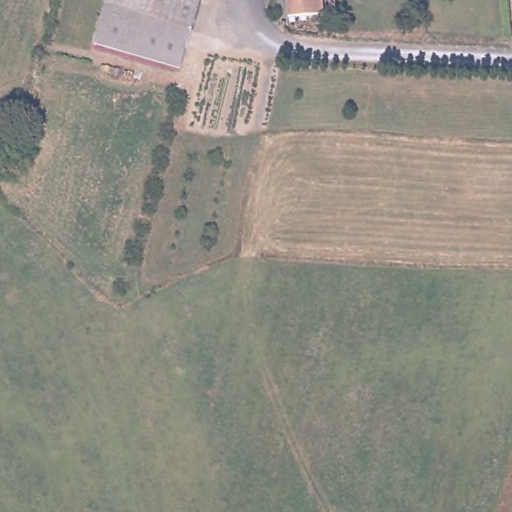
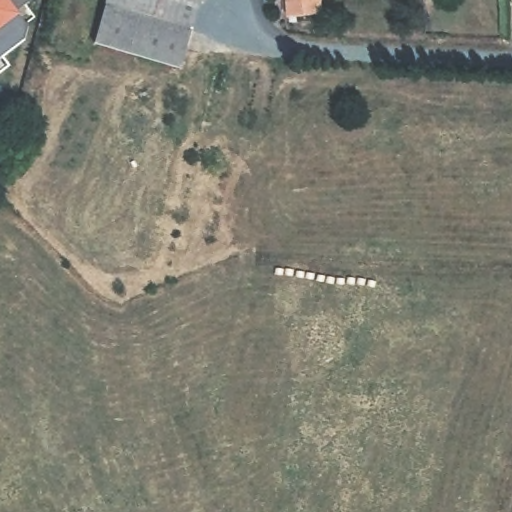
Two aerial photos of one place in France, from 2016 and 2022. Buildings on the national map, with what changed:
new [(25,28),(23,41),(0,57),(0,0),(34,0),(15,12),(25,28)]
unchanged [(97,42),(108,0),(202,0),(184,65),(97,42)]
unchanged [(289,24),(288,0),(323,0),(325,24),(289,24)]

